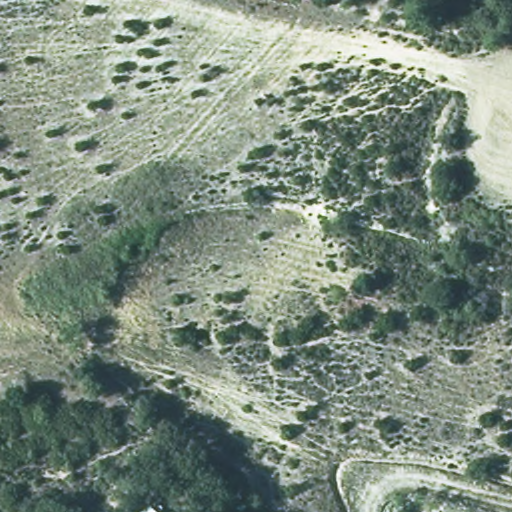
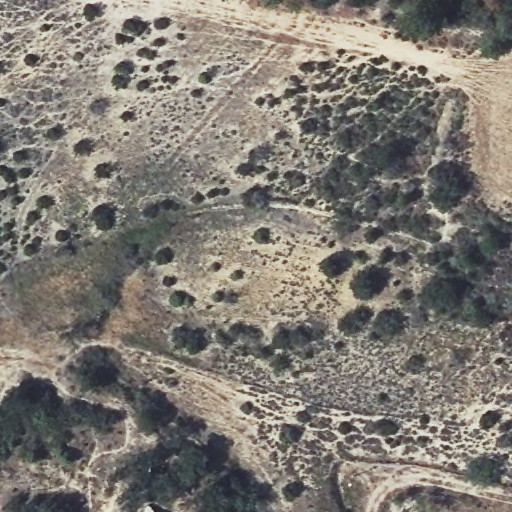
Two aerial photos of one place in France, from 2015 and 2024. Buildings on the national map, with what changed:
unchanged [(157,512),(156,512),(157,511),(157,512)]

